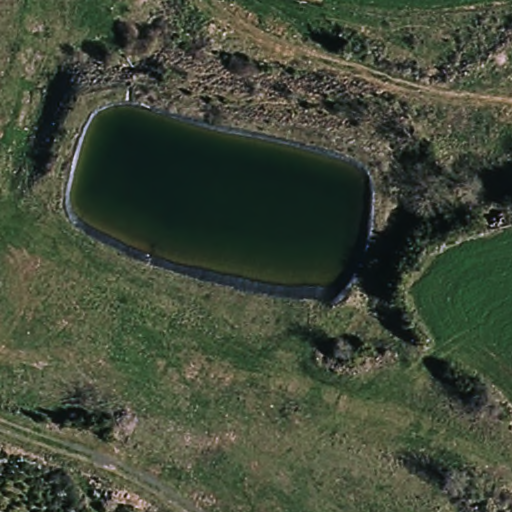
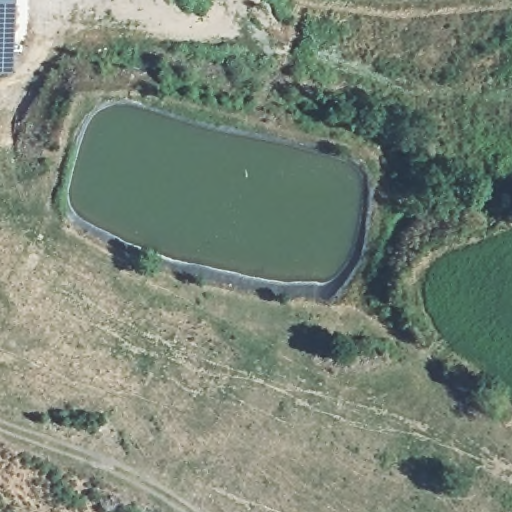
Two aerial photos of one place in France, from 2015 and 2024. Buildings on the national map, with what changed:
new [(14,74),(0,74),(0,0),(13,0),(14,74)]

